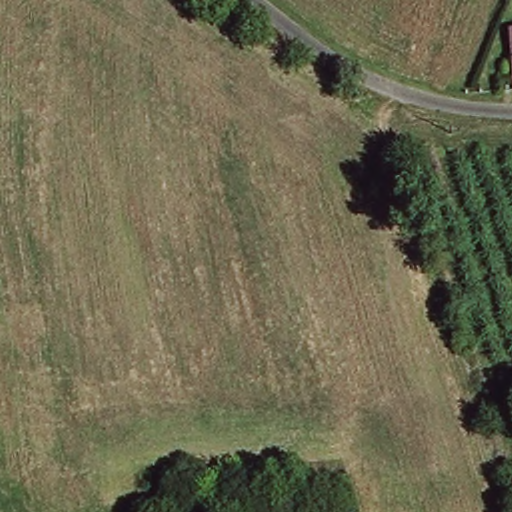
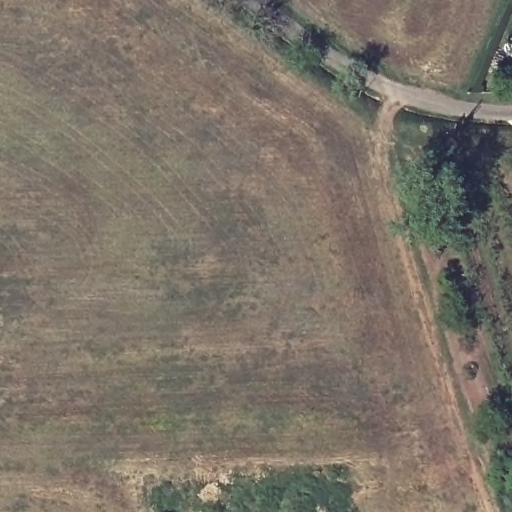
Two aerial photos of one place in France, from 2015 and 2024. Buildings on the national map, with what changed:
unchanged [(510,33),(512,33),(512,73),(510,33)]

